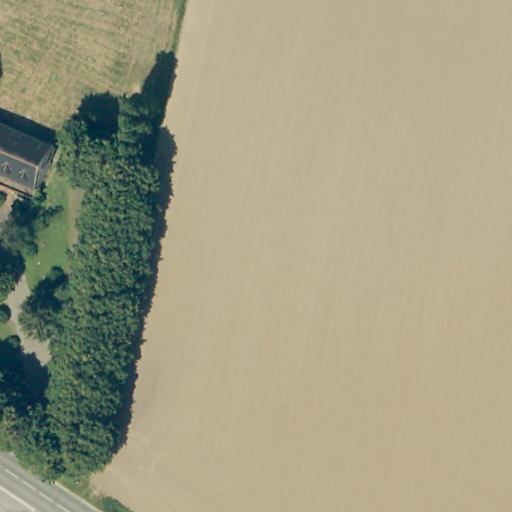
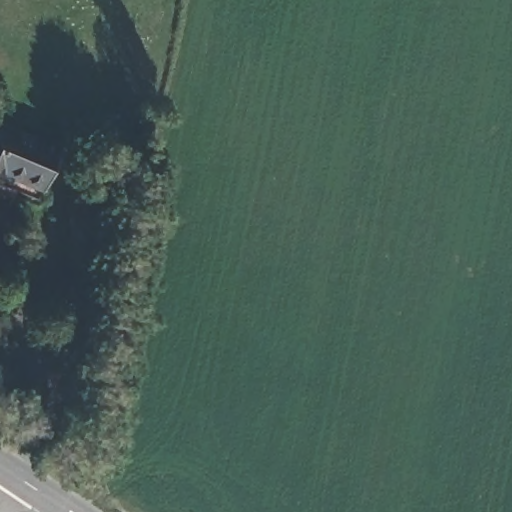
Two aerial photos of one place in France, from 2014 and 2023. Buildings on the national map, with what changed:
unchanged [(5,180),(0,193),(0,116),(60,144),(38,195),(5,180)]

